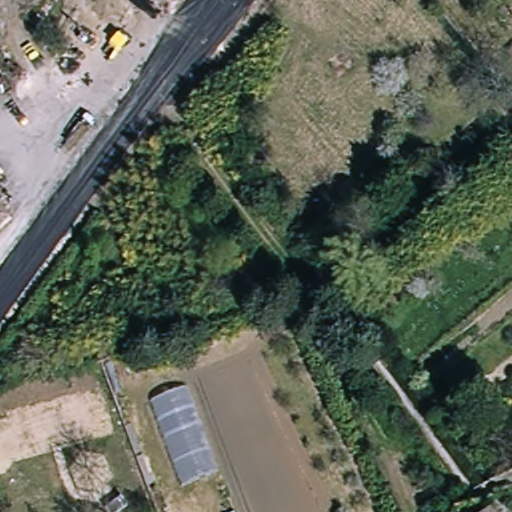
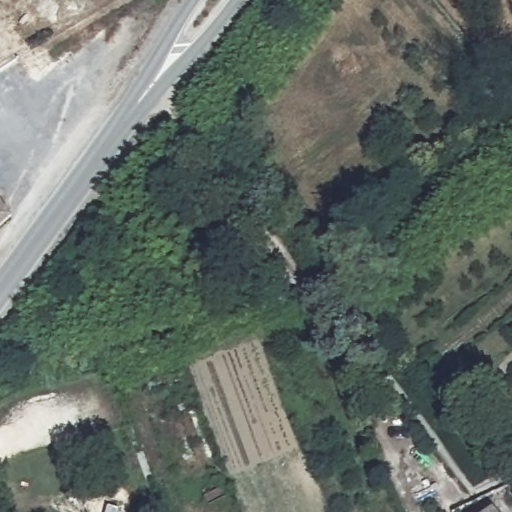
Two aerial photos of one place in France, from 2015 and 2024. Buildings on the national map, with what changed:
unchanged [(3,219),(0,221),(0,215),(3,219)]
demolished [(189,381),(222,472),(187,485),(153,397),(189,381)]

